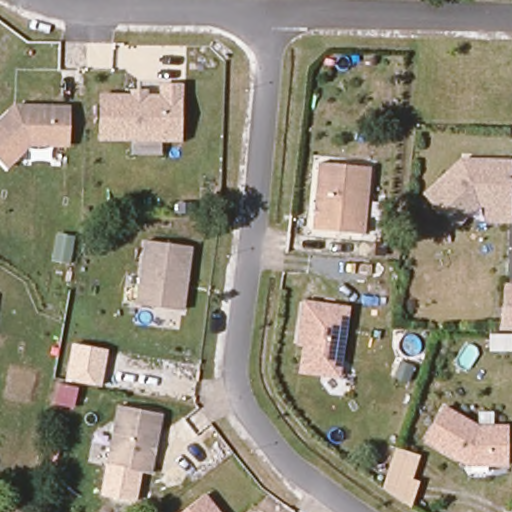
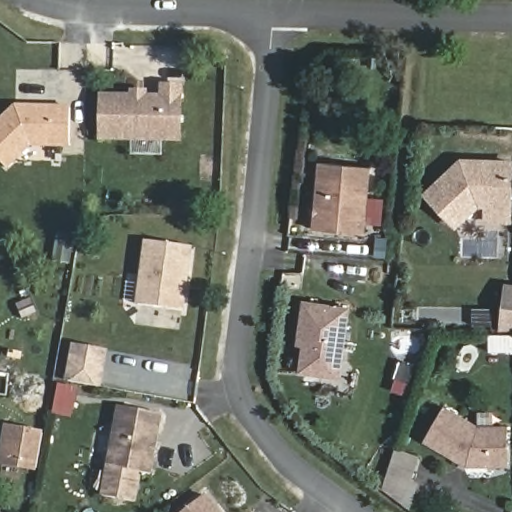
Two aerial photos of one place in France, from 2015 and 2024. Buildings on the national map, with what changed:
unchanged [(161,99),(162,87),(181,87),(181,142),(99,141),(99,98),(161,99)]
unchanged [(68,145),(28,144),(4,166),(0,162),(0,118),(13,105),(19,106),(29,106),(69,108),(68,145)]
unchanged [(485,207),(475,208),(454,231),(423,196),(461,160),(512,159),(512,181),(511,226),(484,226),(485,207)]
unchanged [(371,167),(364,234),(314,230),(320,163),(371,167)]
unchanged [(183,310),(137,303),(147,240),(192,247),(187,281),(186,290),(183,310)]
unchanged [(512,287),(512,330),(503,330),(502,286),(512,287)]
unchanged [(341,381),(297,375),(301,347),(293,346),(301,300),(351,306),(341,381)]
new [(512,335),(512,353),(489,352),(489,335),(512,335)]
unchanged [(107,349),(101,386),(65,380),(71,343),(107,349)]
unchanged [(60,395),(57,413),(36,410),(40,390),(60,395)]
unchanged [(120,407),(163,415),(151,475),(141,472),(109,466),(120,407)]
unchanged [(477,427),(508,427),(508,465),(467,465),(424,441),(443,408),(477,427)]
new [(35,471),(0,465),(0,445),(4,423),(44,430),(35,471)]
unchanged [(412,479),(420,481),(411,510),(381,488),(396,447),(420,455),(412,479)]
unchanged [(105,465),(109,466),(141,472),(136,502),(100,495),(105,465)]
unchanged [(216,512),(182,512),(202,496),(216,512)]

